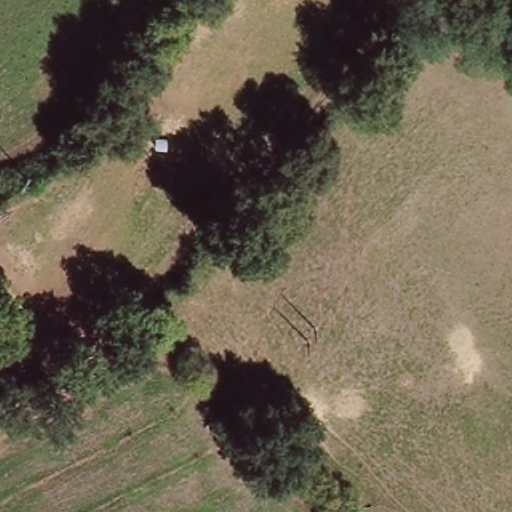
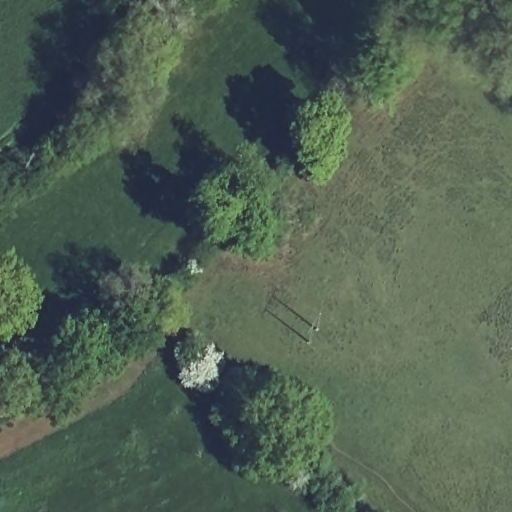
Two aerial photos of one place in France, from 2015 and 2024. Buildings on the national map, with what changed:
unchanged [(512,13),(512,36),(496,23),(508,9),(512,13)]

